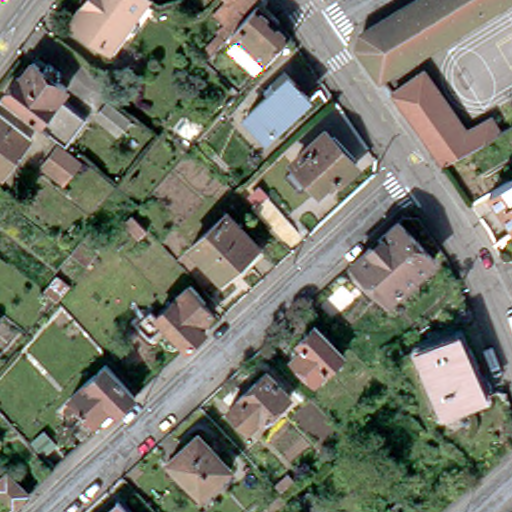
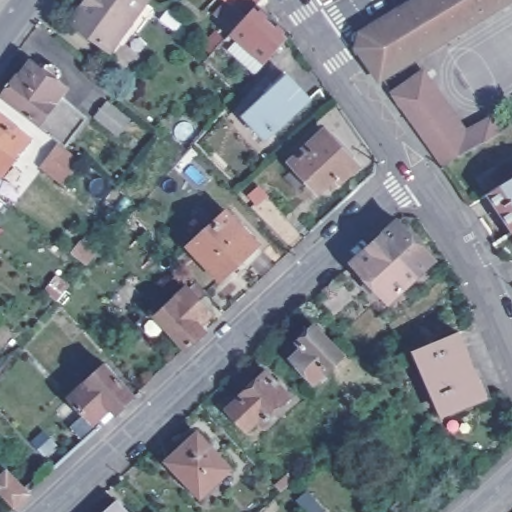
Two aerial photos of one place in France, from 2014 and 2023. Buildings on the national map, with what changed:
unchanged [(71,21),(86,0),(146,0),(110,49),(71,21)]
unchanged [(232,2),(230,0),(253,0),(229,26),(217,15),(232,2)]
unchanged [(253,0),(254,0),(285,31),(262,58),(229,26),(253,0)]
unchanged [(403,0),(499,0),(377,75),(355,46),(358,28),(403,0)]
unchanged [(42,71),(47,67),(67,83),(59,92),(85,113),(63,141),(30,118),(2,95),(29,61),(42,71)]
unchanged [(423,71),(465,131),(490,118),(499,131),(444,163),(402,104),(393,91),(423,71)]
unchanged [(311,99),(268,139),(247,116),(290,77),(311,99)]
unchanged [(124,121),(114,134),(92,117),(103,104),(124,121)]
unchanged [(0,169),(0,113),(27,134),(0,169)]
unchanged [(357,165),(332,187),(328,182),(319,191),(293,163),(327,133),(357,165)]
unchanged [(78,161),(60,185),(39,169),(57,145),(78,161)]
unchanged [(491,193),(512,180),(512,226),(491,193)]
unchanged [(259,246),(233,270),(227,264),(217,273),(187,241),(222,207),(259,246)]
unchanged [(134,214),(149,230),(141,238),(125,223),(134,214)]
unchanged [(434,261),(390,302),(354,262),(398,220),(434,261)]
unchanged [(80,243),(95,254),(86,265),(71,254),(80,243)]
unchanged [(158,314),(189,286),(214,313),(201,325),(207,331),(189,348),(158,314)]
unchanged [(343,350),(314,377),(293,354),(305,343),(300,336),(317,320),(343,350)]
unchanged [(487,394),(444,413),(418,352),(462,333),(487,394)]
unchanged [(100,411),(94,417),(100,424),(89,434),(85,438),(72,424),(87,410),(72,393),(107,359),(136,391),(117,408),(115,406),(105,415),(100,411)]
unchanged [(291,397),(264,423),(260,418),(247,430),(229,410),(242,398),(240,396),(267,371),(291,397)]
unchanged [(232,468),(202,495),(170,460),(200,433),(232,468)]
unchanged [(44,458),(57,446),(67,459),(55,470),(44,458)]
unchanged [(0,482),(10,473),(29,494),(14,508),(0,493),(0,482)]
unchanged [(132,512),(108,512),(121,500),(132,512)]

